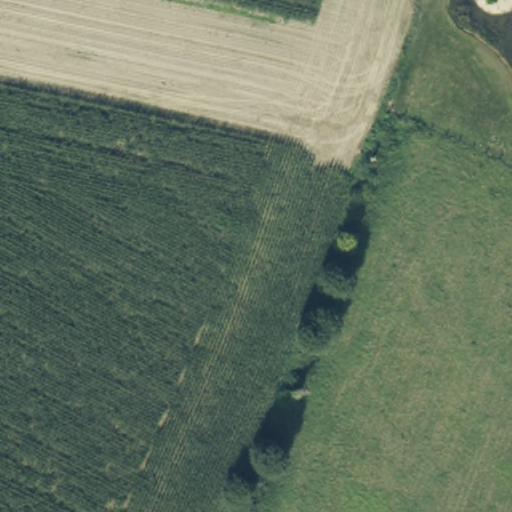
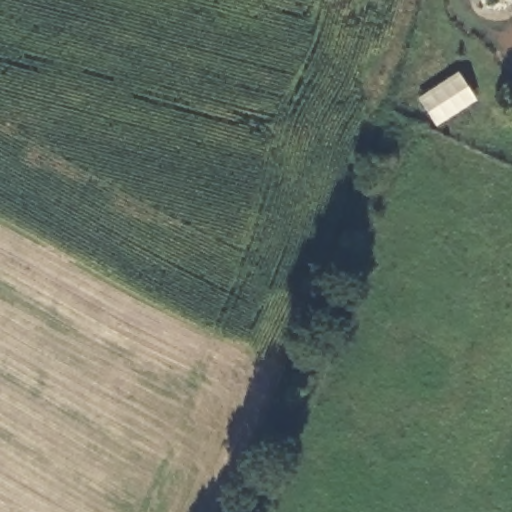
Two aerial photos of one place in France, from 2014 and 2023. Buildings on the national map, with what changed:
new [(477,100),(436,126),(418,97),(458,72),(477,100)]

